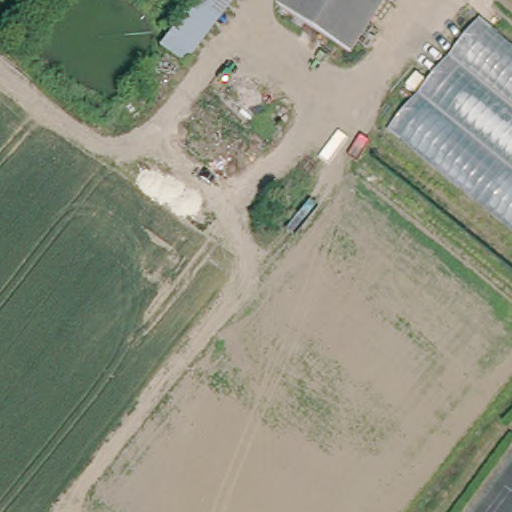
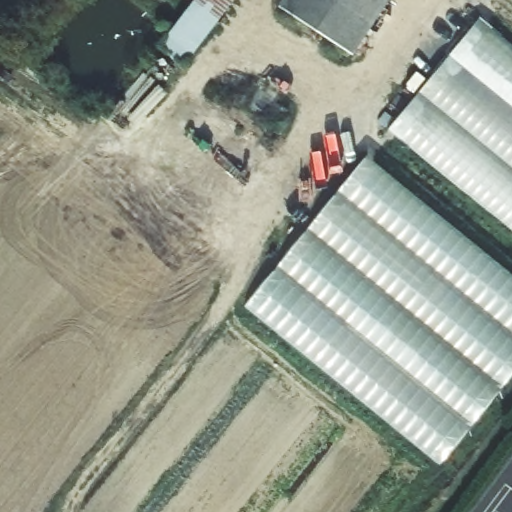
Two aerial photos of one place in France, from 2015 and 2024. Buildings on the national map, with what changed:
unchanged [(182,63),(158,44),(193,0),(231,0),(182,63)]
unchanged [(359,54),(287,6),(291,0),(394,0),(359,54)]
unchanged [(512,43),(512,228),(389,128),(479,17),(512,43)]
new [(512,276),(512,375),(441,464),(246,306),(366,155),(512,276)]

